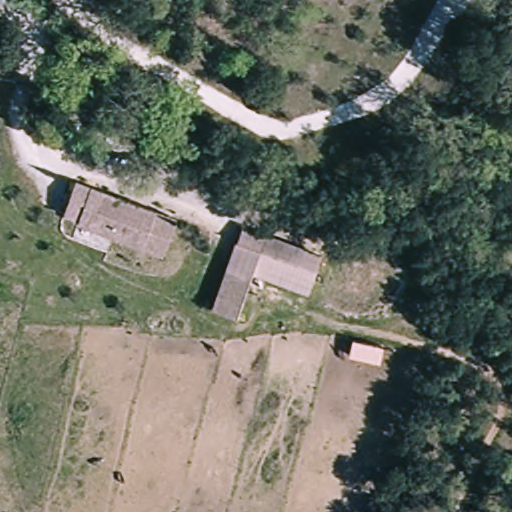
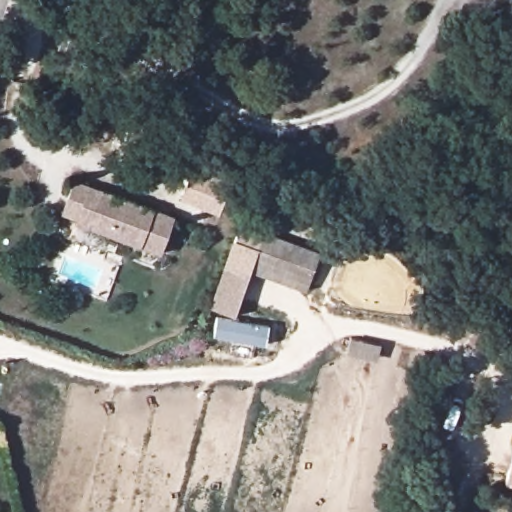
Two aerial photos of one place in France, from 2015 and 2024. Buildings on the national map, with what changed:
unchanged [(178,217),(165,254),(67,215),(80,179),(178,217)]
unchanged [(328,252),(313,293),(255,272),(237,316),(213,307),(247,222),(328,252)]
new [(505,484),(512,455),(512,486),(505,484)]

